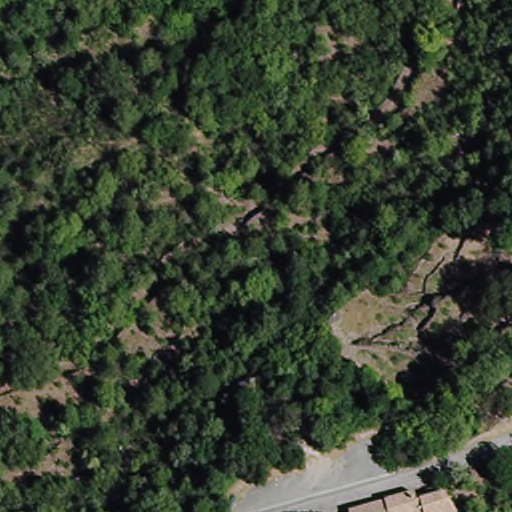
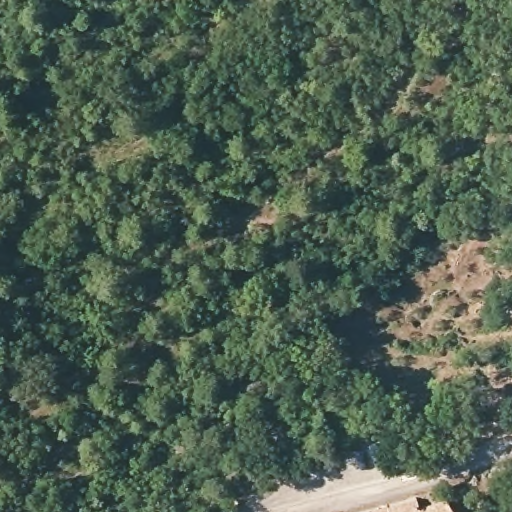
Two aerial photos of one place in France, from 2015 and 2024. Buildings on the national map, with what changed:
unchanged [(384,510),(411,492),(422,504),(446,497),(456,512),(376,512),(384,510)]

